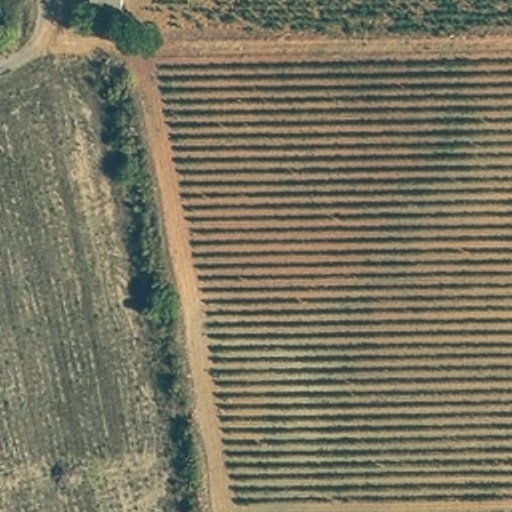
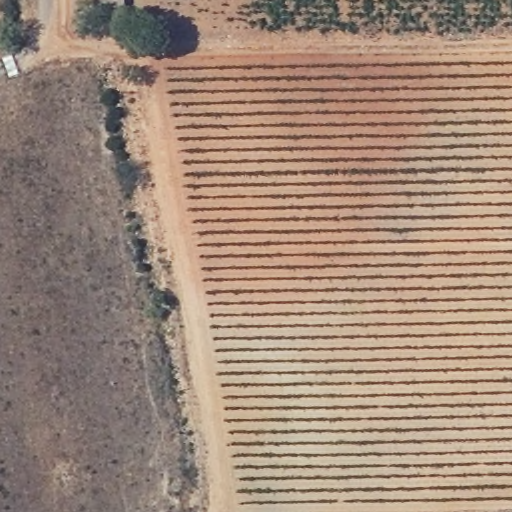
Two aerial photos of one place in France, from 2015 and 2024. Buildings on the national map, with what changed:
unchanged [(121,16),(93,19),(91,0),(119,0),(121,16)]

